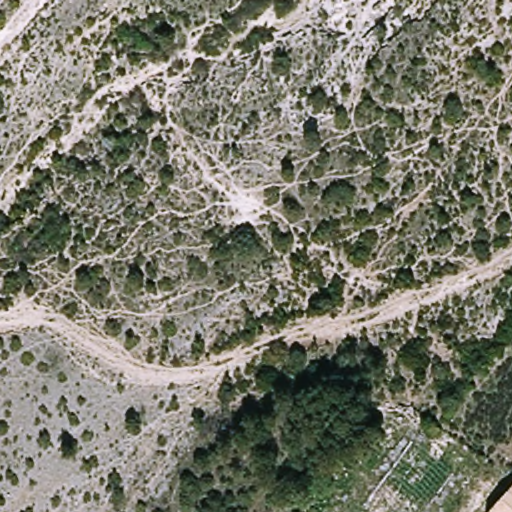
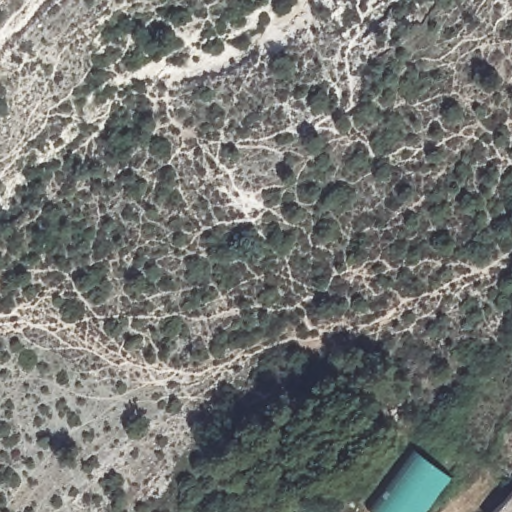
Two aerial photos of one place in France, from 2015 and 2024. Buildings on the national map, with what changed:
new [(452,477),(424,512),(374,512),(364,504),(409,446),(452,477)]
unchanged [(493,512),(512,490),(512,512),(493,512)]

